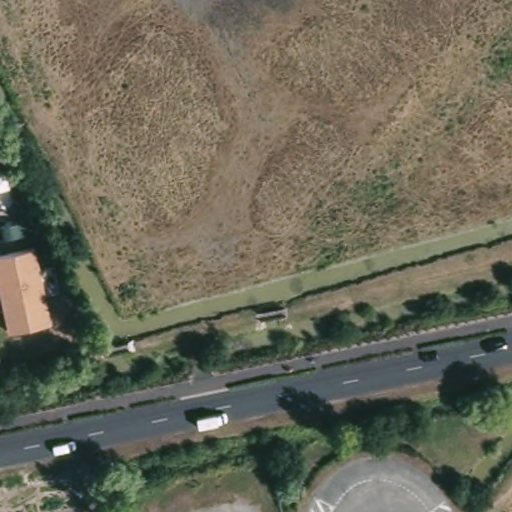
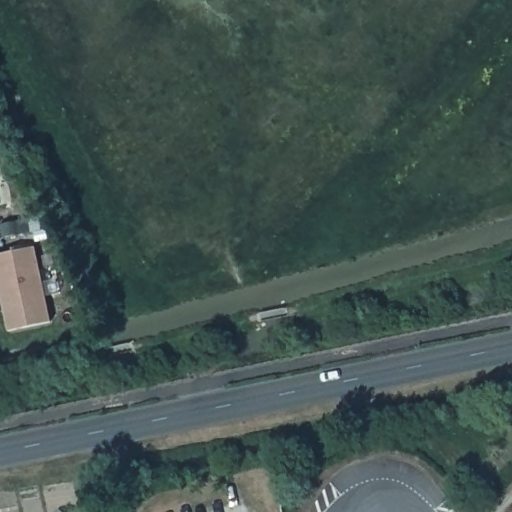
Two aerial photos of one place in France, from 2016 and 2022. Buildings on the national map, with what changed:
unchanged [(52,322),(10,332),(0,292),(0,255),(36,247),(52,322)]

